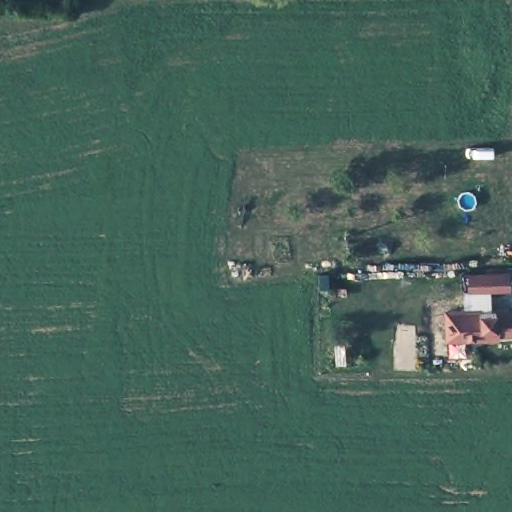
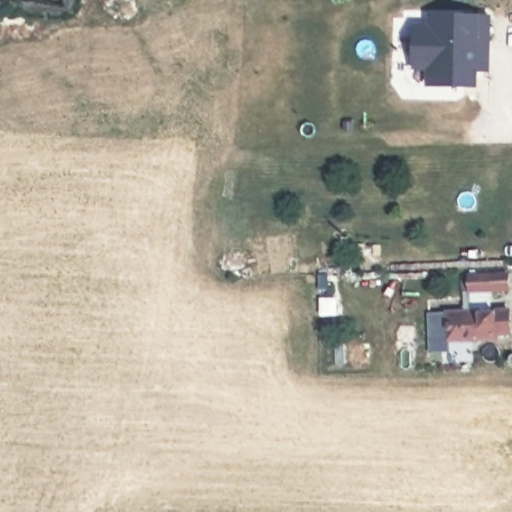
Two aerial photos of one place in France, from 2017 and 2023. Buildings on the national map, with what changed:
new [(427,86),(426,68),(413,67),(414,22),(427,23),(427,11),(491,15),(491,72),(480,70),(480,88),(427,86)]
unchanged [(507,271),(508,287),(470,289),(469,273),(507,271)]
unchanged [(508,317),(509,340),(495,340),(496,345),(447,347),(446,320),(508,317)]

